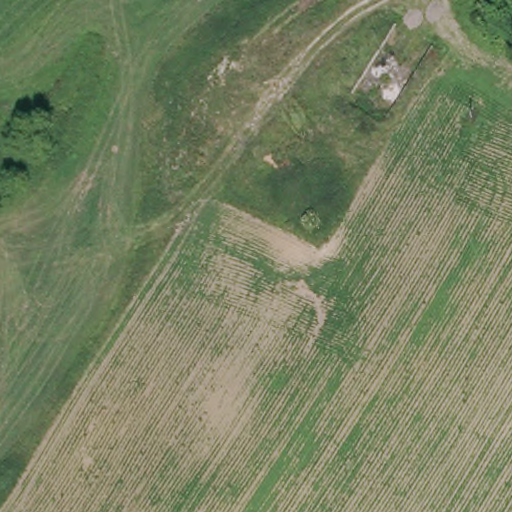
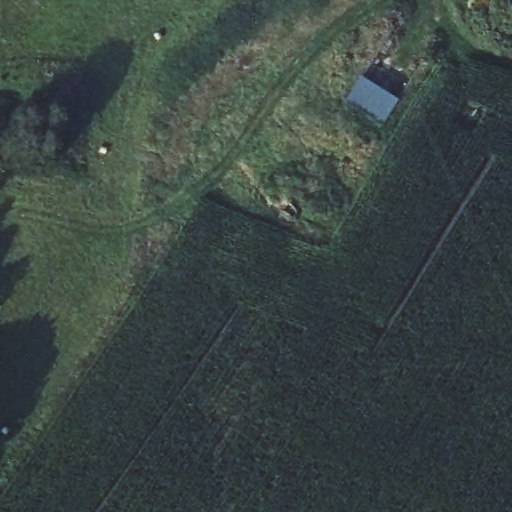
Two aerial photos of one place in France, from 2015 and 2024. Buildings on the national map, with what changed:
new [(397,103),(384,125),(346,101),(360,78),(397,103)]

